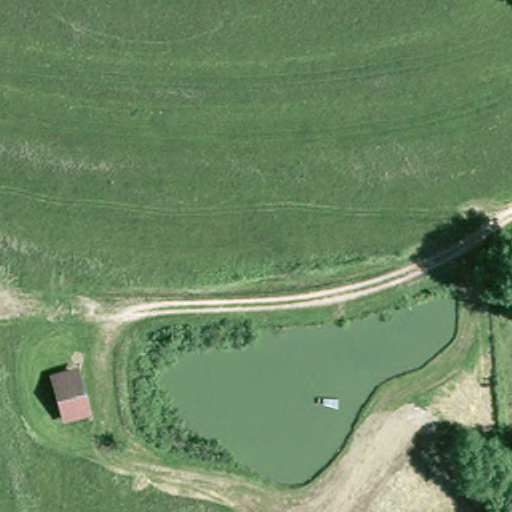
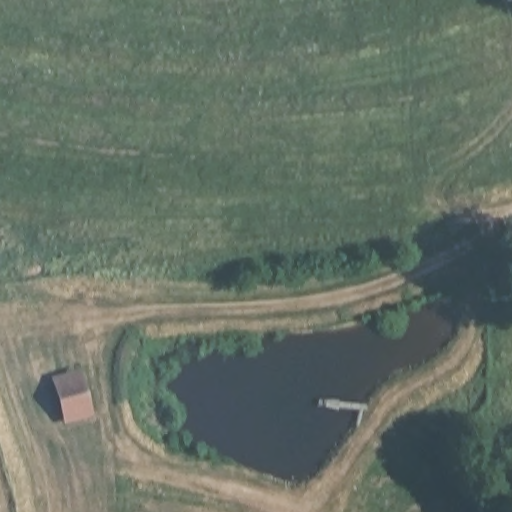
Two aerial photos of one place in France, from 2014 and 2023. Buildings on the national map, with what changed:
unchanged [(64,424),(52,376),(81,371),(90,418),(64,424)]

